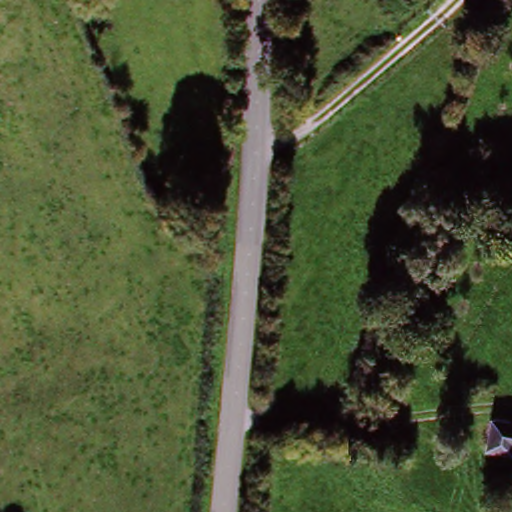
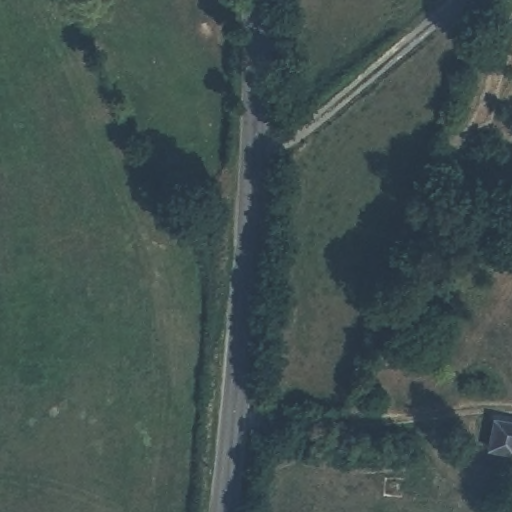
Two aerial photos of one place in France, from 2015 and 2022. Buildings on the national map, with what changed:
unchanged [(464,458),(468,423),(512,430),(512,465),(464,458)]

